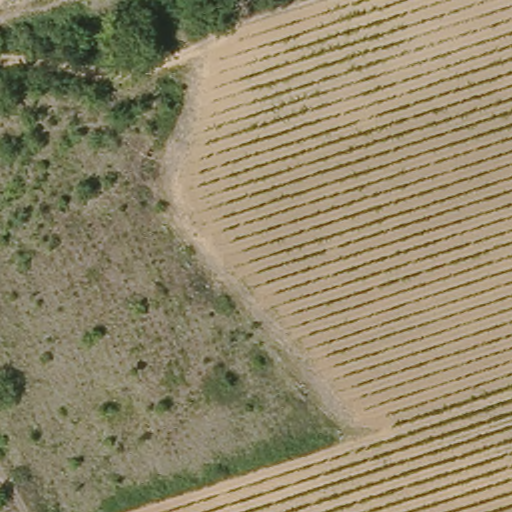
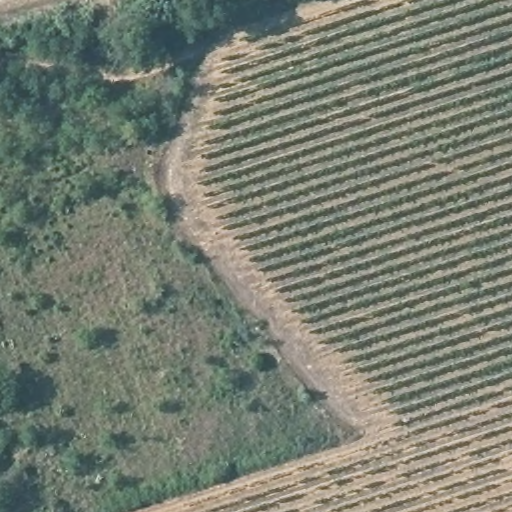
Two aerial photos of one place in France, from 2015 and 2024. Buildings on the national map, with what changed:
unchanged [(153,148),(143,142),(153,127),(163,131),(153,148)]

